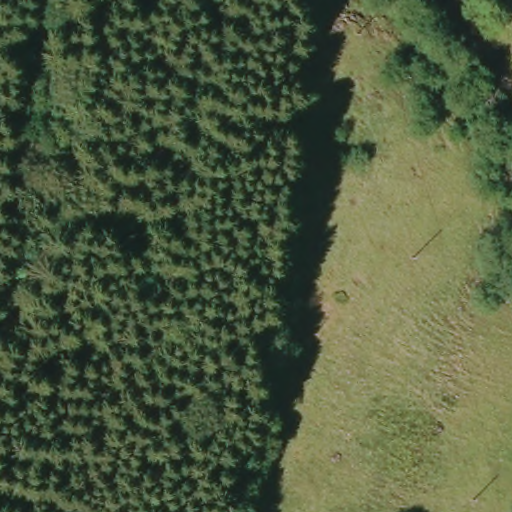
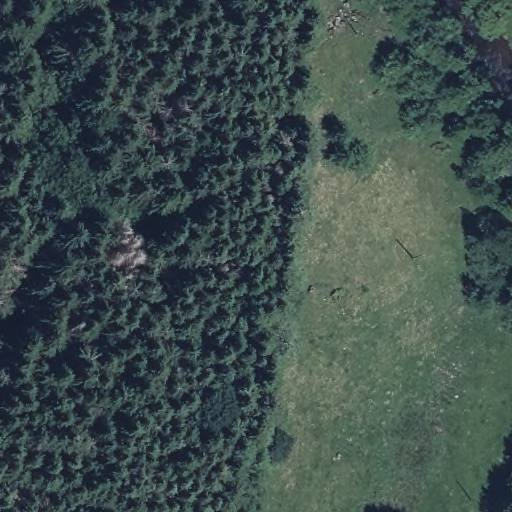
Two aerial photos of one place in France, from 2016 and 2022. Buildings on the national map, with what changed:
[]

